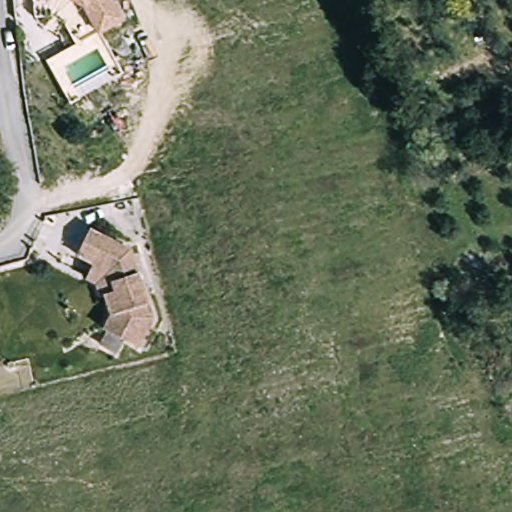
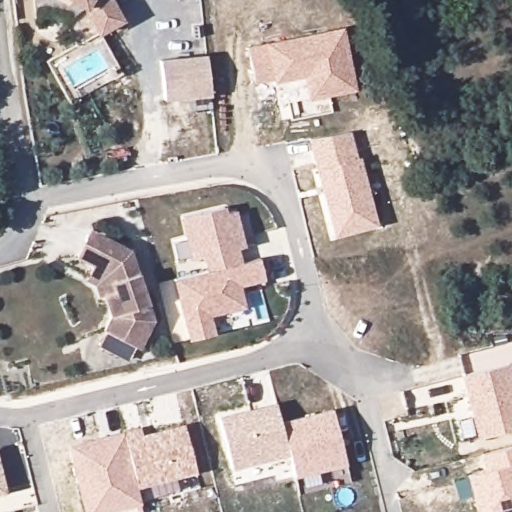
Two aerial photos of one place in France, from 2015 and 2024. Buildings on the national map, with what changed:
unchanged [(109,0),(122,21),(100,34),(80,6),(70,0),(109,0)]
new [(307,100),(302,77),(273,82),(272,77),(254,81),(247,45),(343,26),(356,90),(307,100)]
new [(209,57),(212,96),(165,99),(162,60),(209,57)]
new [(360,157),(378,224),(333,236),(307,137),(350,131),(357,157),(360,157)]
new [(240,286),(245,306),(210,315),(215,333),(188,341),(171,279),(206,270),(203,256),(190,259),(190,254),(176,257),(172,241),(185,238),(180,216),(225,204),(227,212),(235,210),(244,247),(237,249),(241,261),(258,256),(265,279),(240,286)]
unchanged [(155,321),(140,350),(105,331),(113,319),(105,294),(100,296),(97,288),(90,283),(96,267),(78,260),(90,233),(114,243),(133,251),(155,321)]
new [(460,375),(510,363),(512,373),(512,427),(475,436),(460,375)]
new [(295,476),(288,453),(231,468),(217,416),(275,402),(280,421),(331,407),(346,462),(295,476)]
new [(103,512),(84,512),(67,443),(123,430),(138,425),(140,434),(184,423),(196,472),(136,487),(140,503),(103,512)]
new [(467,475),(485,471),(480,454),(512,445),(512,512),(476,512),(467,475)]
new [(0,494),(0,467),(6,492),(0,494)]

